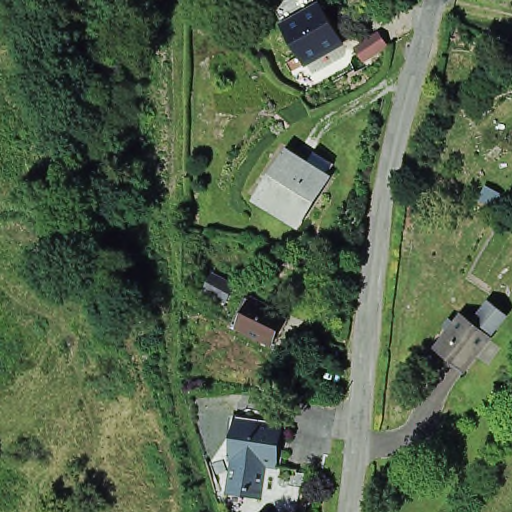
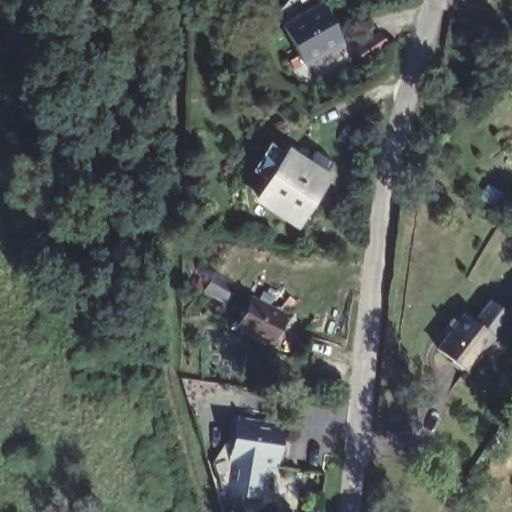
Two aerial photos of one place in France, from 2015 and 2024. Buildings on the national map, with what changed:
unchanged [(341,44),(306,66),(282,31),(317,6),(341,44)]
unchanged [(371,69),(359,59),(380,36),(392,48),(371,69)]
unchanged [(294,230),(256,205),(268,187),(262,182),(287,145),(312,161),(307,168),(326,181),(294,230)]
unchanged [(240,287),(232,301),(211,288),(219,274),(240,287)]
unchanged [(273,347),(241,330),(257,301),(290,317),(273,347)]
unchanged [(441,352),(466,315),(476,324),(492,303),(512,318),(495,339),(468,372),(441,352)]
unchanged [(275,467),(228,459),(228,452),(237,412),(284,421),(275,467)]
unchanged [(276,496),(220,484),(216,474),(210,455),(228,452),(228,459),(275,467),(284,421),(293,423),(276,496)]

